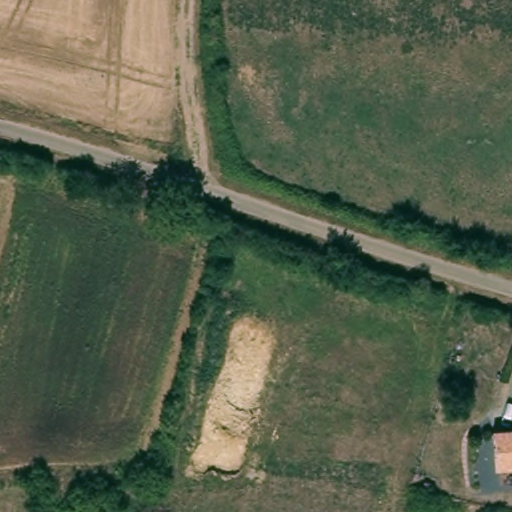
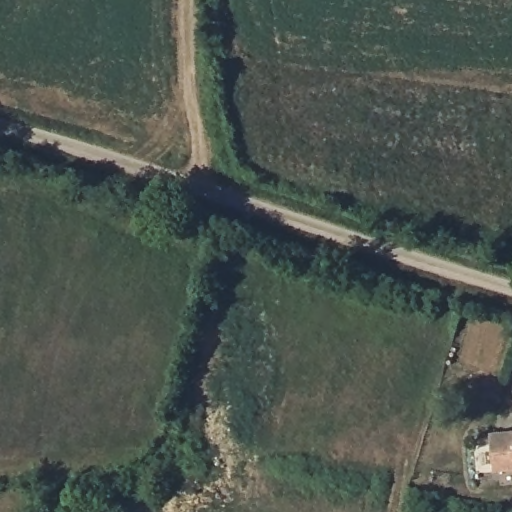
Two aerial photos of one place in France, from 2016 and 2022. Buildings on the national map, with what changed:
unchanged [(512,466),(502,467),(499,428),(512,427),(512,466)]

